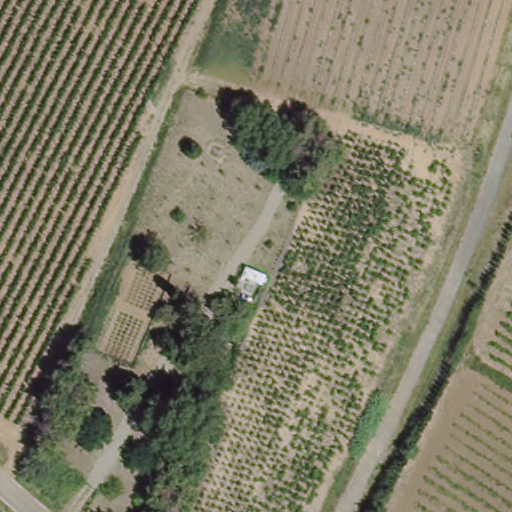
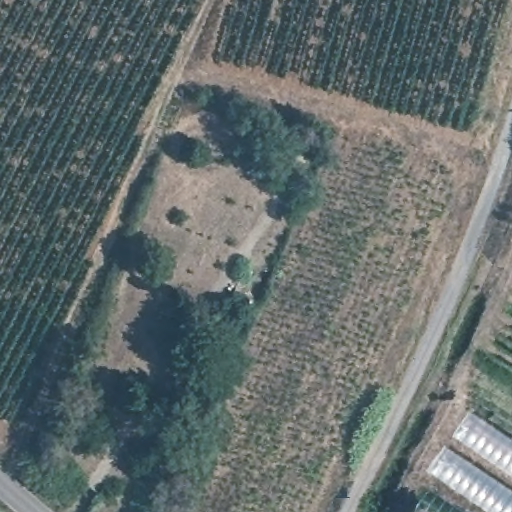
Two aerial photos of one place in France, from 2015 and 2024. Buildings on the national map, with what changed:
unchanged [(228,362),(214,356),(220,343),(235,348),(228,362)]
new [(472,417),(512,444),(512,479),(455,441),(472,417)]
new [(448,452),(512,495),(512,512),(484,512),(432,477),(448,452)]
new [(457,512),(419,512),(430,494),(457,512)]

